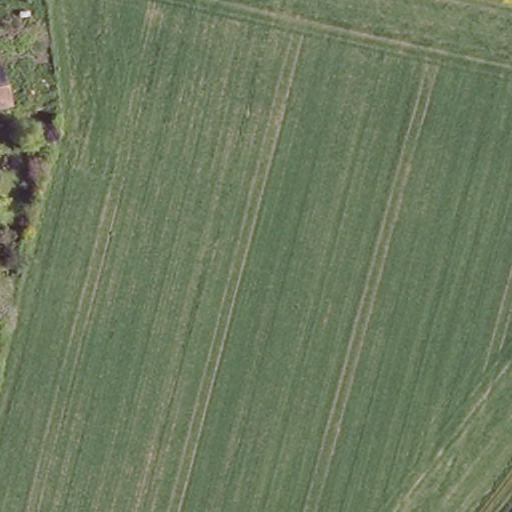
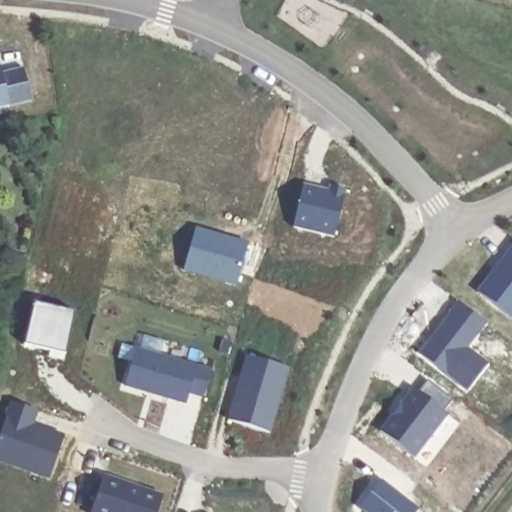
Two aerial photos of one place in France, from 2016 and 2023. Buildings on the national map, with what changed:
unchanged [(4,67),(15,105),(0,109),(0,52),(4,67)]
new [(306,187),(331,193),(333,188),(349,192),(338,240),(296,230),(306,187)]
new [(193,228),(246,244),(234,285),(181,270),(193,228)]
new [(512,246),(512,318),(512,319),(477,293),(512,246)]
new [(33,303),(73,313),(62,360),(46,357),(48,352),(23,346),(33,303)]
new [(136,349),(210,372),(203,397),(188,392),(184,404),(124,385),(136,349)]
new [(227,417),(246,352),(287,365),(269,430),(227,417)]
new [(393,416),(394,417),(402,408),(400,406),(414,388),(419,392),(428,380),(453,400),(444,411),(448,415),(414,458),(380,432),(393,416)]
new [(31,424),(39,427),(63,435),(61,440),(48,477),(0,461),(0,430),(10,401),(35,410),(31,424)]
new [(161,496),(156,512),(90,512),(102,476),(161,496)]

